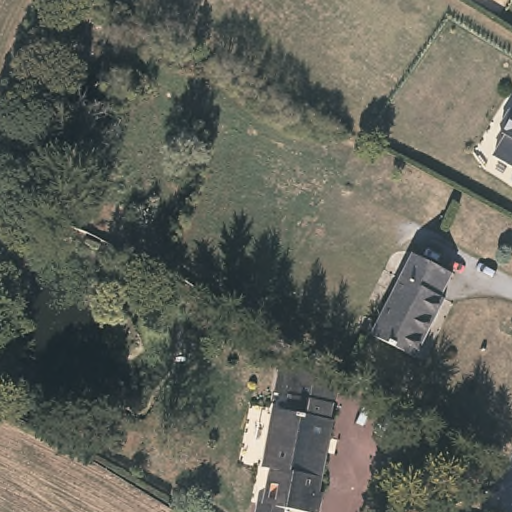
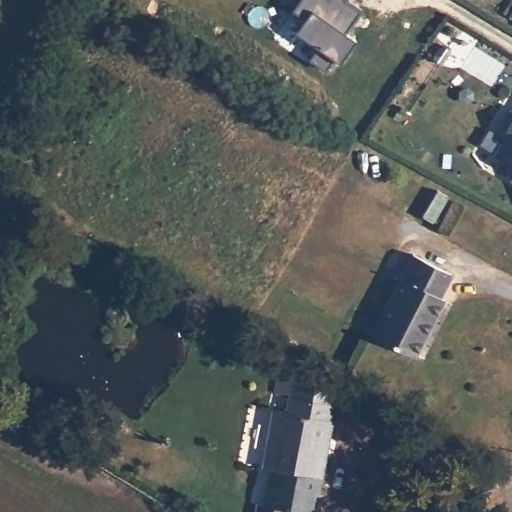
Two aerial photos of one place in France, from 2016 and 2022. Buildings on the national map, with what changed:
new [(346,1),(360,12),(343,33),(353,40),(338,64),(332,59),(327,71),(308,58),(316,47),(295,32),(303,19),(291,10),(297,1),(296,0),(346,0),(346,1)]
unchanged [(495,158),(507,136),(502,133),(500,127),(511,109),(512,109),(512,168),(495,158)]
unchanged [(512,178),(512,181),(511,180),(512,178)]
unchanged [(455,270),(441,297),(445,299),(416,356),(375,334),(419,251),(455,270)]
unchanged [(337,372),(331,398),(288,390),(286,397),(274,394),(282,360),(337,372)]
unchanged [(327,416),(330,417),(316,486),(321,487),(314,512),(307,512),(292,509),(291,512),(257,512),(261,500),(264,500),(272,468),(262,466),(273,410),(282,412),(286,397),(288,390),(331,398),(327,416)]

